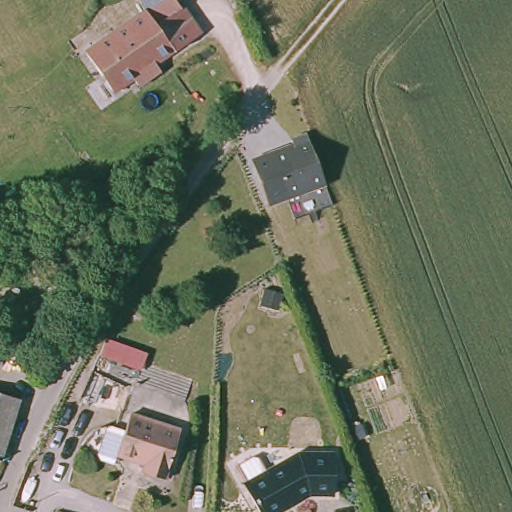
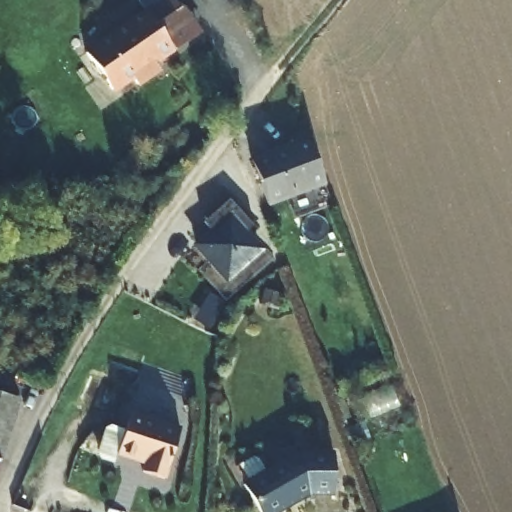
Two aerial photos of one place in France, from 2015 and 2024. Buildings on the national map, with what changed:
unchanged [(126,86),(119,78),(102,90),(78,54),(138,13),(129,0),(166,0),(173,11),(189,34),(164,51),(160,45),(140,59),(148,71),(126,86)]
unchanged [(326,184),(284,199),(265,149),(291,141),(290,135),(306,129),(326,184)]
new [(241,238),(255,254),(223,283),(193,250),(208,237),(200,228),(225,205),(248,232),(241,238)]
unchanged [(0,461),(0,393),(20,399),(0,461)]
unchanged [(168,491),(145,484),(148,474),(120,464),(117,474),(105,469),(102,463),(110,439),(117,436),(128,440),(134,424),(183,441),(168,491)]
unchanged [(294,457),(333,459),(331,499),(308,498),(282,512),(258,512),(244,486),(294,457)]

